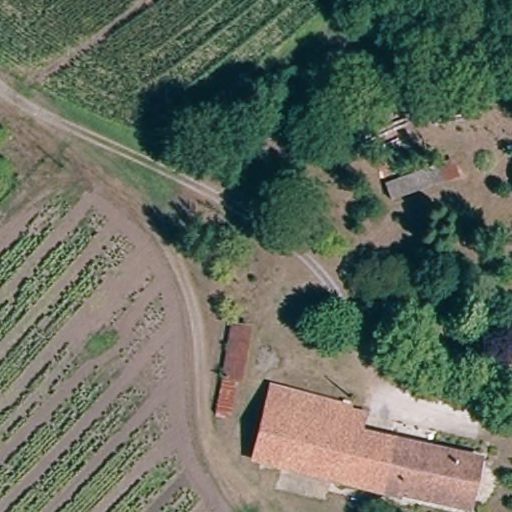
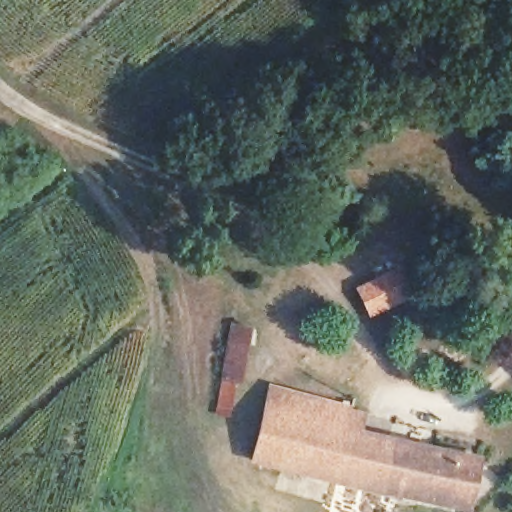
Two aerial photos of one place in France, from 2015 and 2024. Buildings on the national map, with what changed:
unchanged [(461,184),(395,206),(390,185),(453,163),(461,184)]
new [(398,267),(407,286),(412,283),(417,294),(370,317),(355,287),(398,267)]
unchanged [(245,377),(224,374),(232,319),(255,322),(245,377)]
unchanged [(350,408),(346,428),(481,462),(467,512),(400,495),(400,497),(255,464),(270,388),(350,408)]

